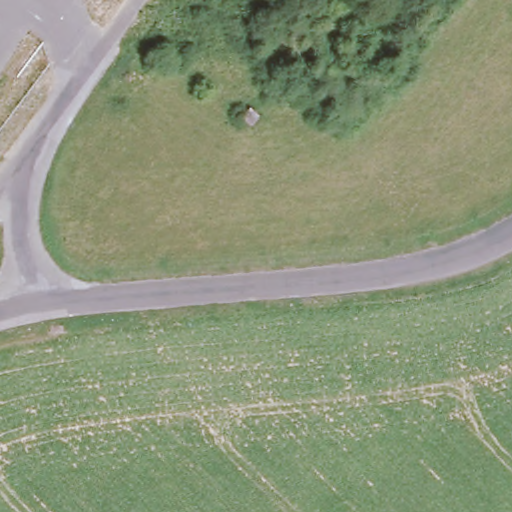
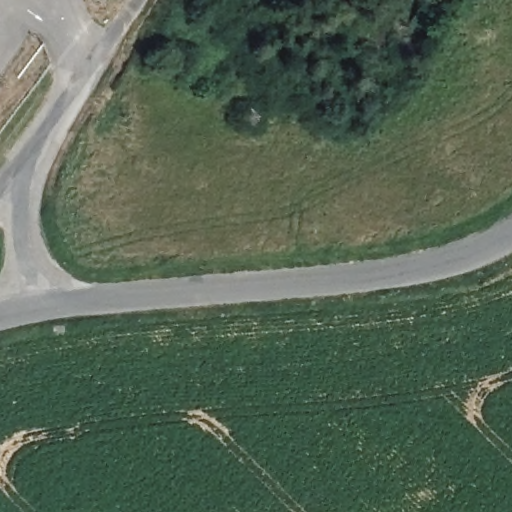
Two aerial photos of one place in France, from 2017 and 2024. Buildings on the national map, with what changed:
[]

